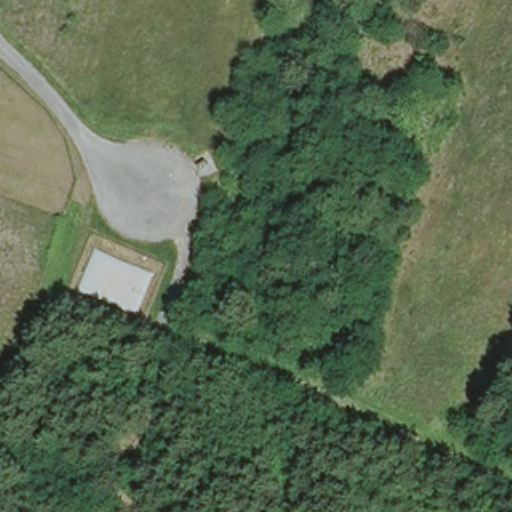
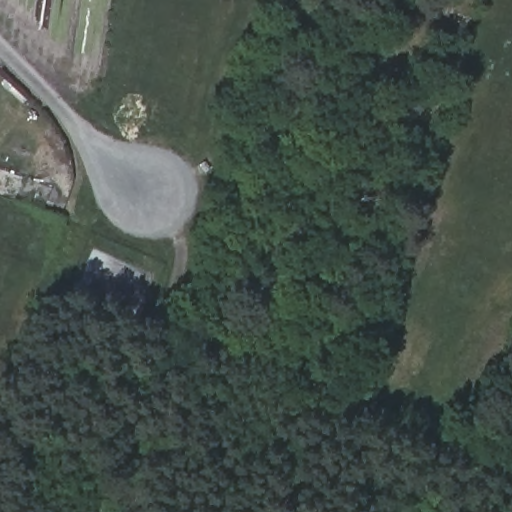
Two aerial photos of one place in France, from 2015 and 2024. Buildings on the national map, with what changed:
[]

